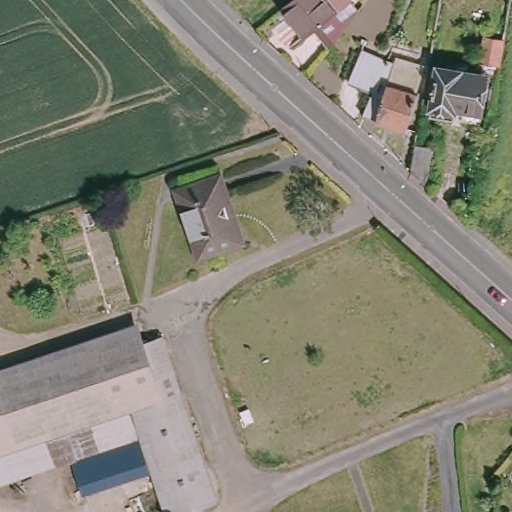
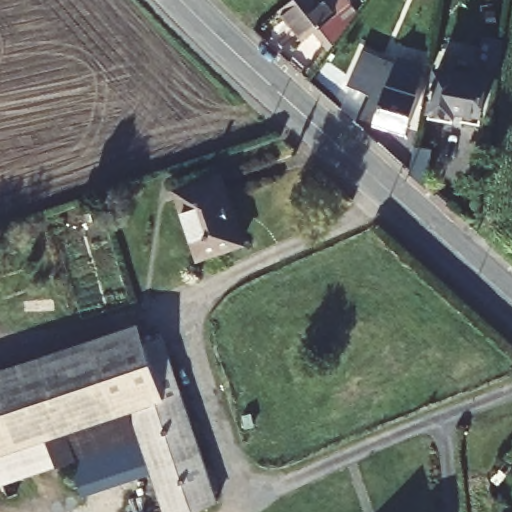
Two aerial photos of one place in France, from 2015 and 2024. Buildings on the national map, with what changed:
unchanged [(289,0),(349,0),(350,2),(307,35),(284,5),(289,0)]
unchanged [(480,65),(484,36),(496,38),(498,29),(505,31),(500,54),(498,68),(480,65)]
unchanged [(396,85),(423,94),(412,131),(367,116),(377,93),(352,82),(365,51),(391,61),(402,66),(396,85)]
unchanged [(429,66),(437,68),(440,66),(490,77),(482,113),(454,107),(452,112),(430,106),(435,81),(427,78),(429,66)]
unchanged [(415,174),(420,144),(438,147),(431,188),(415,174)]
unchanged [(225,195),(232,218),(235,217),(242,240),(204,253),(197,233),(192,235),(177,189),(220,174),(227,194),(225,195)]
unchanged [(162,512),(152,478),(81,501),(71,464),(0,487),(0,369),(139,322),(145,345),(162,337),(216,500),(180,512),(162,512)]

